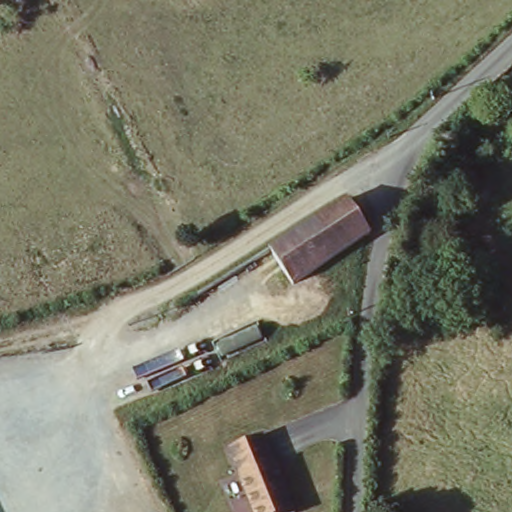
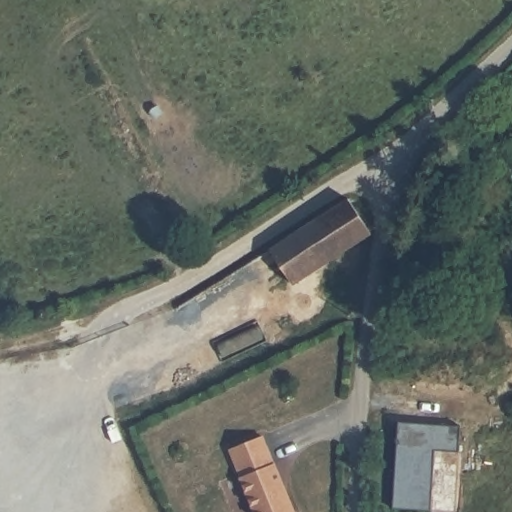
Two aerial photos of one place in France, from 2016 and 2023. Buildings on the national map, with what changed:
unchanged [(293,283),(272,244),(346,200),(369,236),(359,241),(293,283)]
new [(395,420),(457,425),(455,450),(431,448),(428,511),(392,510),(395,420)]
unchanged [(279,463),(296,512),(256,512),(244,482),(239,484),(227,452),(264,436),(274,464),(279,463)]

